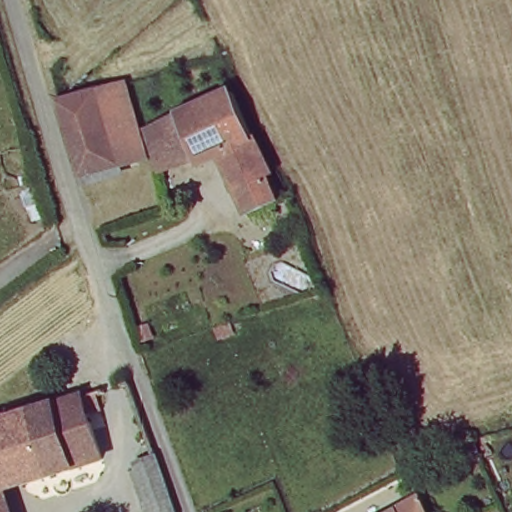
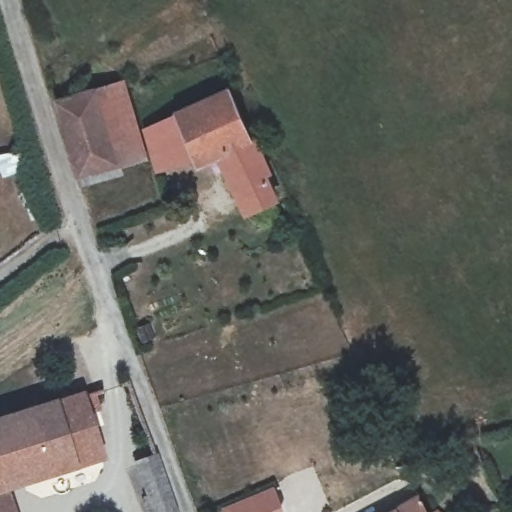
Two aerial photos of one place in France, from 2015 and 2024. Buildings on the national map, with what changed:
unchanged [(62,95),(122,76),(141,126),(151,154),(86,175),(62,95)]
unchanged [(150,121),(233,81),(267,146),(274,165),(263,170),(273,192),(243,204),(218,149),(167,164),(150,121)]
unchanged [(0,488),(0,418),(84,405),(96,474),(14,486),(0,488)]
unchanged [(134,471),(160,463),(176,505),(149,511),(134,471)]
new [(275,485),(284,510),(283,512),(223,512),(222,507),(275,485)]
unchanged [(14,486),(20,512),(0,512),(0,488),(14,486)]
unchanged [(415,495),(425,512),(381,512),(415,495)]

